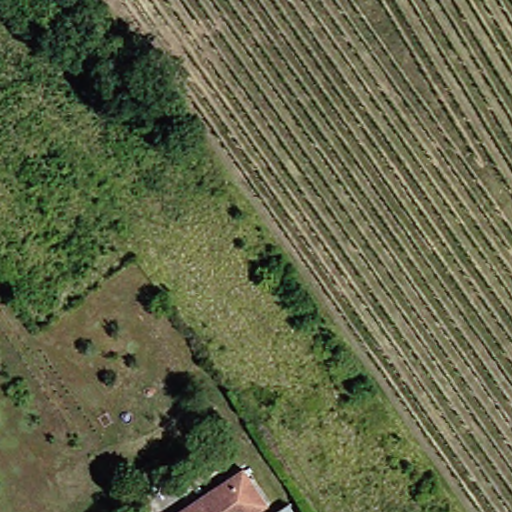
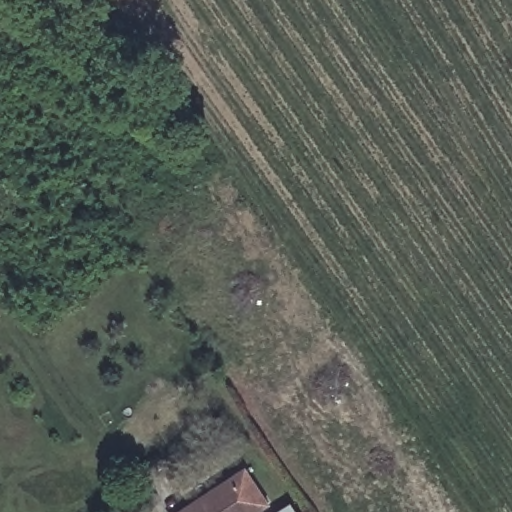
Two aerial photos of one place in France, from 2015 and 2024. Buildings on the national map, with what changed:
unchanged [(273,509),(270,512),(168,512),(160,498),(148,479),(167,465),(180,485),(192,506),(249,469),(273,509)]

